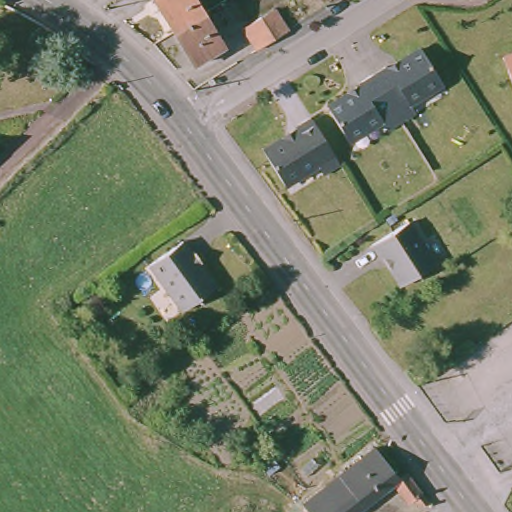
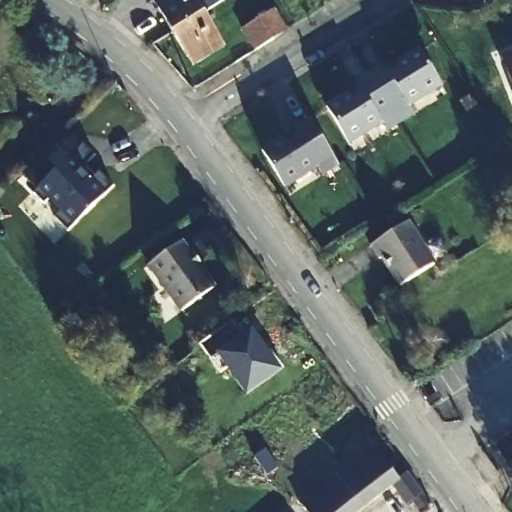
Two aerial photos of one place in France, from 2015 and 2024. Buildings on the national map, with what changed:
unchanged [(151,0),(195,0),(202,11),(199,13),(169,31),(150,1),(151,0)]
new [(195,0),(219,0),(202,11),(195,0)]
unchanged [(219,44),(188,63),(169,31),(199,13),(219,44)]
unchanged [(249,27),(269,14),(283,33),(262,46),(249,27)]
unchanged [(354,86),(351,82),(379,65),(382,69),(414,49),(437,83),(404,104),(411,115),(384,133),(376,121),(344,141),(321,106),(354,86)]
unchanged [(495,63),(512,56),(512,107),(495,63)]
unchanged [(322,176),(317,168),(287,189),(261,148),(310,116),(338,165),(322,176)]
new [(72,226),(36,189),(83,146),(94,151),(93,158),(87,157),(85,166),(107,183),(111,182),(108,192),(72,226)]
unchanged [(438,265),(404,287),(385,258),(383,259),(374,246),(409,223),(438,265)]
unchanged [(211,282),(179,306),(146,262),(178,238),(211,282)]
new [(231,342),(252,327),(281,372),(246,399),(225,367),(219,372),(201,349),(224,330),(231,342)]
unchanged [(314,510),(328,498),(338,490),(336,487),(361,466),(368,460),(369,459),(394,491),(403,484),(425,512),(415,512),(414,512),(406,512),(390,494),(367,512),(315,512),(314,510)]

